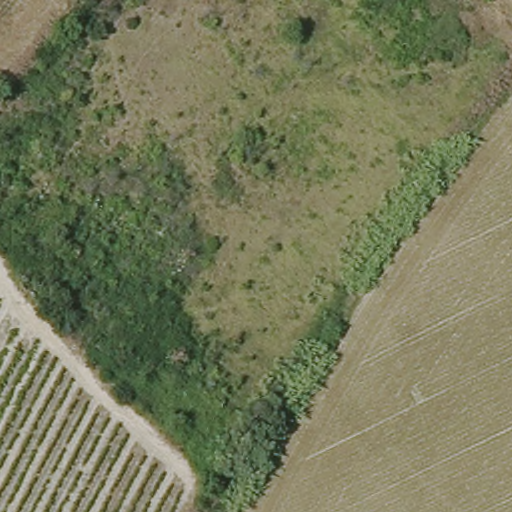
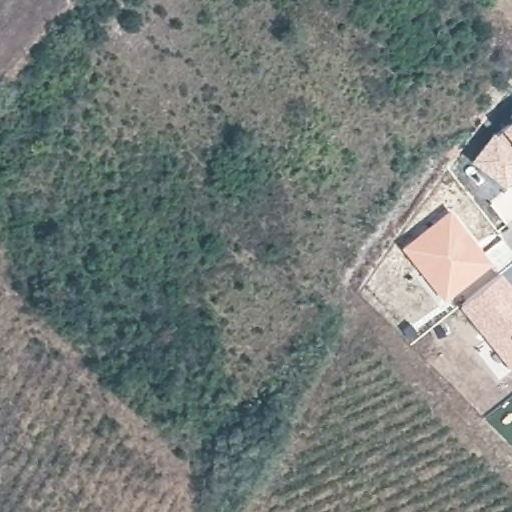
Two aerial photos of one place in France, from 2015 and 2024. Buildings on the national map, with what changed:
new [(512,116),(512,178),(502,187),(470,160),(499,127),(512,116)]
new [(451,210),(491,261),(442,299),(401,247),(451,210)]
new [(512,286),(512,368),(510,370),(458,305),(500,272),(512,286)]

